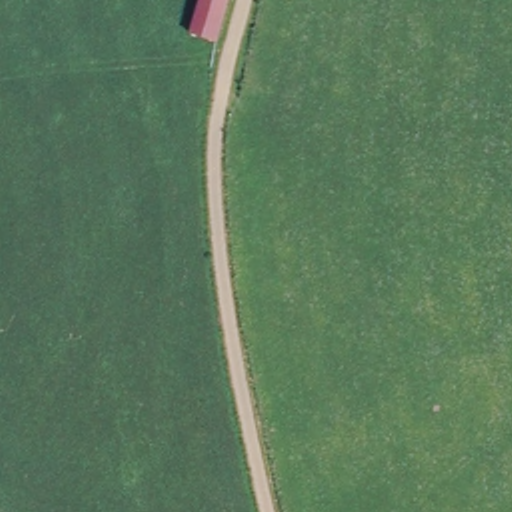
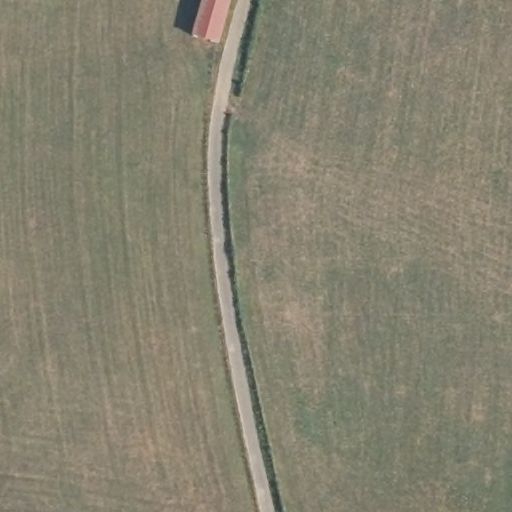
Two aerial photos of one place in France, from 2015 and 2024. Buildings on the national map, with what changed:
unchanged [(184,36),(195,0),(227,0),(216,47),(184,36)]

